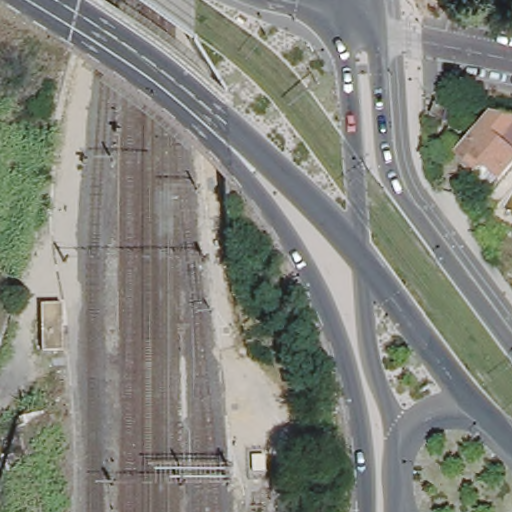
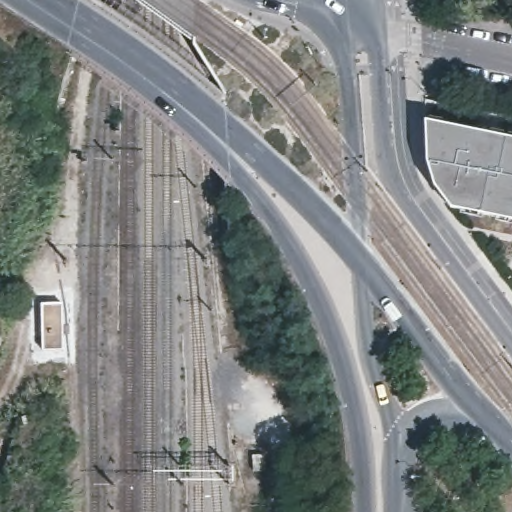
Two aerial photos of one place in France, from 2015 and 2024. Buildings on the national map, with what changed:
demolished [(500,181),(481,165),(476,172),(474,170),(469,172),(460,164),(461,159),(458,157),(493,114),(512,119),(512,167),(500,181)]
new [(450,208),(434,185),(427,162),(425,118),(512,137),(512,220),(450,208)]
unchanged [(62,301),(64,348),(43,349),(41,301),(62,301)]

